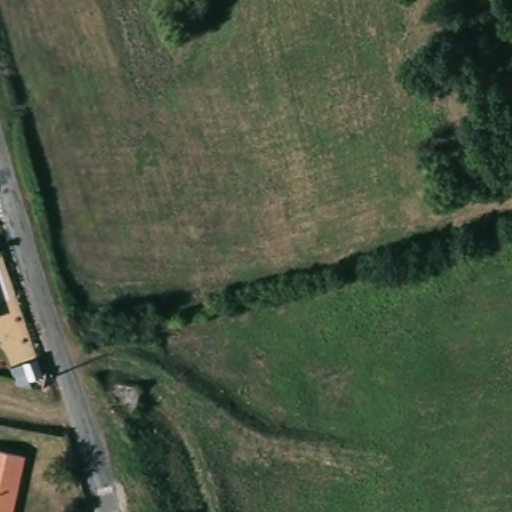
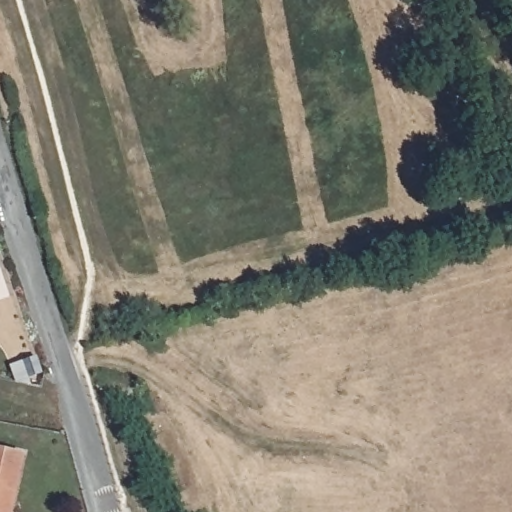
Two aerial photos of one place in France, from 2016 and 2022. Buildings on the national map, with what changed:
unchanged [(22,453),(10,512),(0,512),(0,449),(22,453)]

